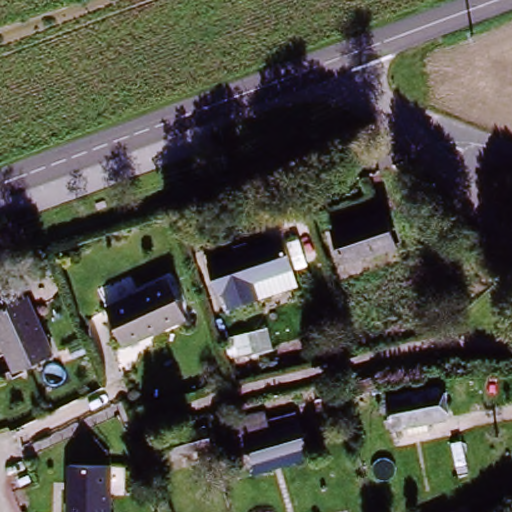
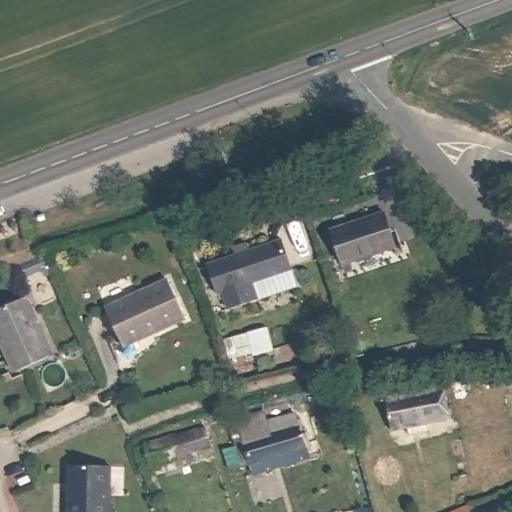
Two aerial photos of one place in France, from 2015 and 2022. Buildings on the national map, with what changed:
unchanged [(385,217),(395,249),(338,266),(330,233),(385,217)]
unchanged [(248,303),(238,305),(222,255),(272,240),(282,273),(288,290),(248,303)]
unchanged [(218,311),(203,260),(222,255),(238,305),(218,311)]
unchanged [(116,339),(104,307),(170,283),(183,322),(148,337),(120,348),(116,339)]
unchanged [(50,351),(11,369),(0,345),(0,307),(26,294),(50,351)]
unchanged [(395,430),(389,400),(435,391),(441,417),(441,420),(395,430)]
unchanged [(251,476),(233,417),(263,409),(267,420),(296,412),(307,461),(251,476)]
unchanged [(185,455),(190,465),(150,477),(136,439),(202,419),(211,448),(185,455)]
unchanged [(109,459),(107,512),(65,512),(67,457),(109,459)]
unchanged [(461,505),(465,512),(450,512),(461,505)]

